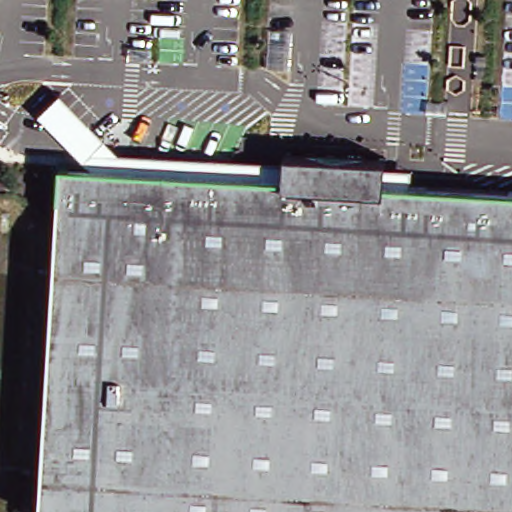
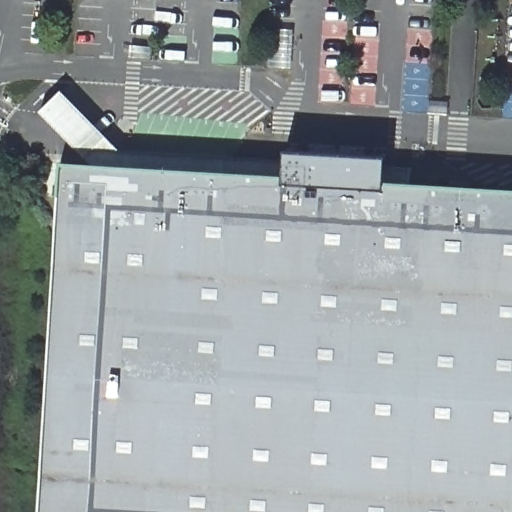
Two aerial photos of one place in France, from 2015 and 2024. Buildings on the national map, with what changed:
unchanged [(176,258),(56,251),(64,162),(278,175),(281,150),(391,158),(390,182),(512,190),(512,401),(169,381),(176,258)]
unchanged [(176,258),(174,298),(169,381),(512,401),(512,512),(41,512),(56,251),(110,254),(176,258)]

